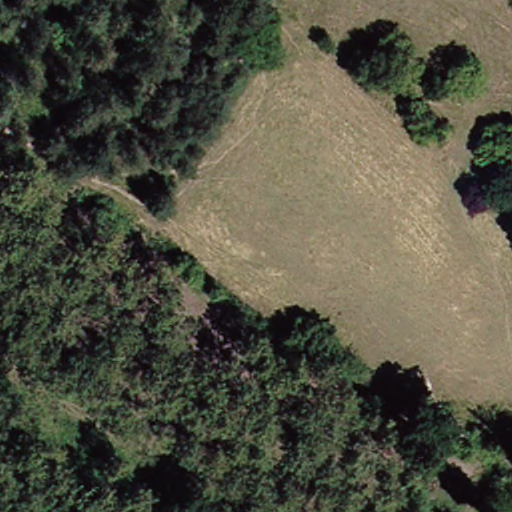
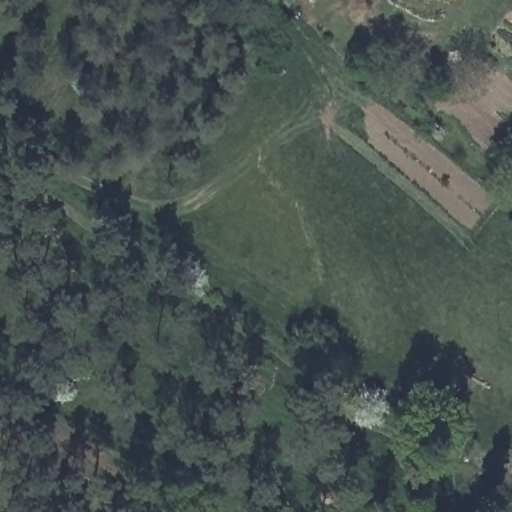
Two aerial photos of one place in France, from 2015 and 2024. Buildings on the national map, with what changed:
[]

